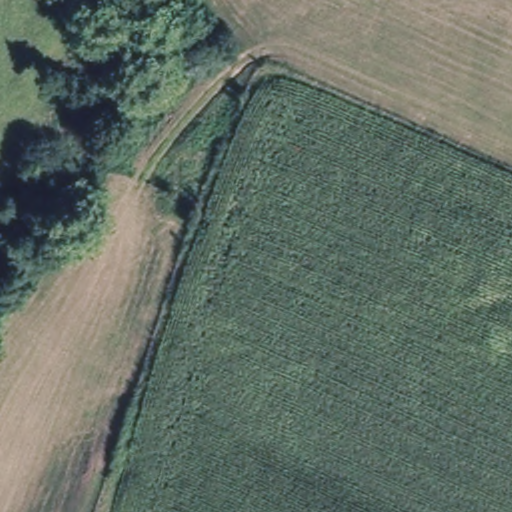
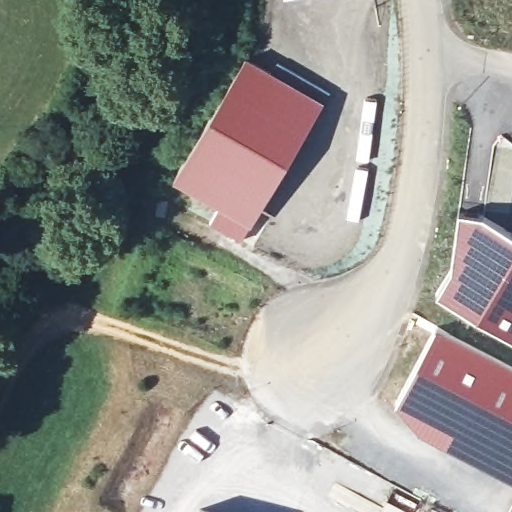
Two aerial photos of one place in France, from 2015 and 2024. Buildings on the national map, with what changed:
new [(247,57),(323,103),(250,225),(241,240),(211,222),(220,206),(174,179),(247,57)]
new [(458,210),(484,215),(512,231),(512,340),(436,293),(448,268),(458,210)]
new [(396,403),(436,325),(512,366),(512,480),(420,433),(396,403)]
new [(512,512),(508,512),(512,505),(512,512)]
new [(225,512),(199,512),(200,506),(225,512)]

